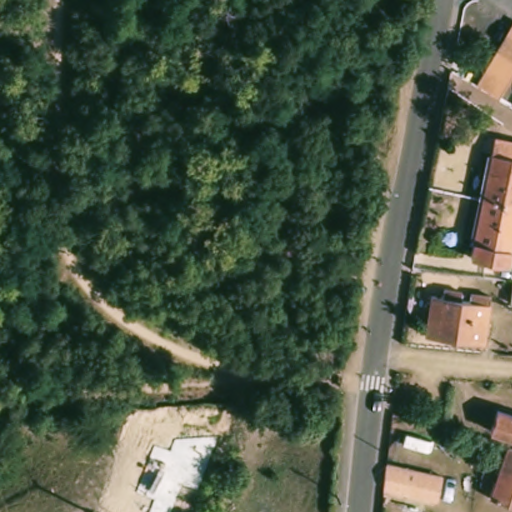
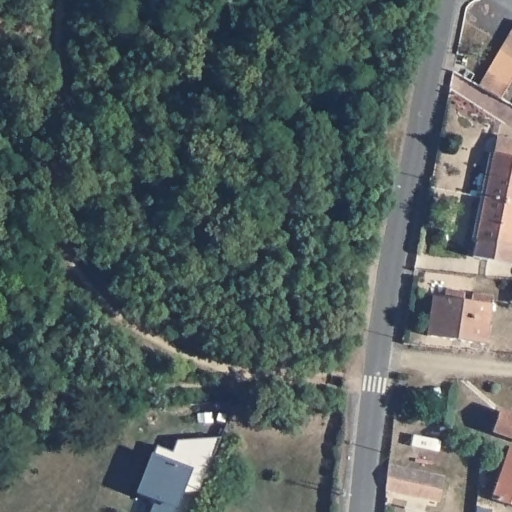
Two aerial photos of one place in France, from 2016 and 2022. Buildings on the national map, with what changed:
unchanged [(512,42),(512,92),(504,105),(481,92),(512,42)]
unchanged [(495,139),(512,142),(512,207),(483,201),(495,139)]
unchanged [(512,207),(512,258),(510,268),(471,260),(483,201),(512,207)]
unchanged [(432,296),(445,299),(447,292),(463,295),(462,301),(471,304),(473,296),(492,298),(485,345),(425,337),(432,296)]
unchanged [(512,299),(512,306),(511,306),(512,299)]
unchanged [(497,412),(512,417),(512,442),(490,435),(497,412)]
new [(148,512),(153,500),(135,492),(155,445),(170,452),(175,440),(219,437),(197,492),(178,492),(170,512),(148,512)]
unchanged [(490,499),(508,448),(512,450),(512,506),(490,499)]
unchanged [(447,478),(441,504),(387,492),(390,466),(447,478)]

